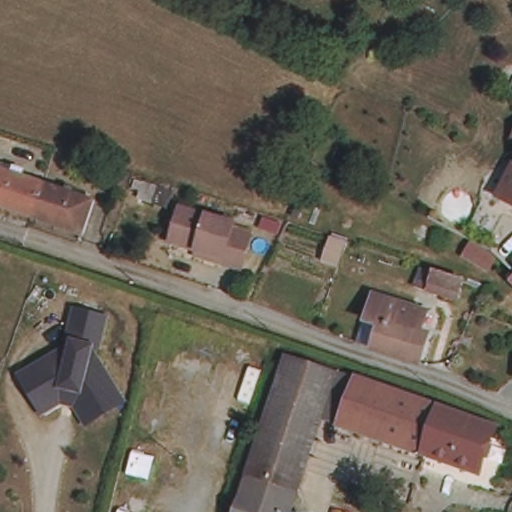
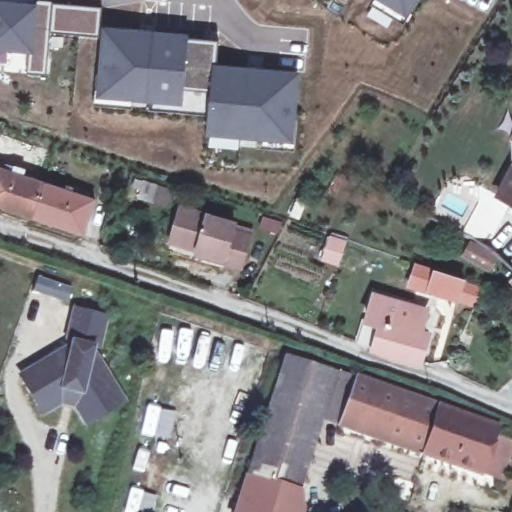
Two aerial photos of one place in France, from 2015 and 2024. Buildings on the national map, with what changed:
new [(28,73),(30,51),(0,49),(0,1),(36,5),(36,0),(41,0),(54,1),(54,4),(102,8),(99,36),(53,32),(47,75),(28,73)]
new [(392,0),(412,0),(407,9),(392,0)]
new [(212,116),(97,104),(98,74),(105,73),(109,31),(142,33),(139,66),(153,68),(157,35),(220,41),(217,69),(248,71),(246,105),(259,106),(264,73),(296,75),(292,118),(299,120),(296,151),(258,149),(260,134),(243,133),(240,146),(210,143),(211,130),(212,116)]
unchanged [(32,216),(0,205),(0,167),(44,182),(32,216)]
unchanged [(95,199),(82,233),(32,216),(44,182),(95,199)]
unchanged [(512,183),(512,202),(505,198),(512,183)]
unchanged [(202,253),(171,246),(177,211),(231,224),(232,231),(247,235),(240,271),(223,267),(200,262),(202,253)]
unchanged [(456,298),(429,288),(416,283),(425,267),(436,271),(465,282),(456,298)]
unchanged [(365,342),(359,340),(366,322),(375,297),(425,313),(420,332),(430,336),(423,364),(404,359),(374,349),(364,346),(365,342)]
unchanged [(80,405),(64,401),(42,414),(37,405),(19,376),(71,344),(72,341),(66,340),(75,307),(109,314),(100,348),(96,346),(95,348),(129,400),(100,420),(93,425),(80,405)]
unchanged [(354,375),(340,422),(323,417),(298,492),(248,474),(288,354),(354,375)]
unchanged [(500,476),(479,470),(340,422),(354,375),(421,399),(494,426),(491,433),(512,440),(500,476)]
unchanged [(298,492),(290,512),(235,512),(248,474),(298,492)]

